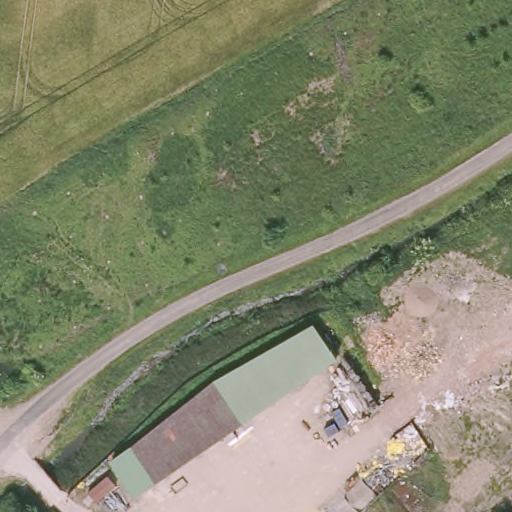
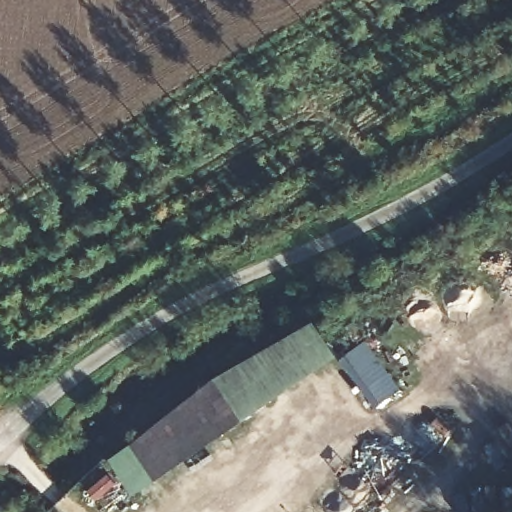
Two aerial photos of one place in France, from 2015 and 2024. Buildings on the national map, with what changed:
unchanged [(216,374),(318,317),(341,355),(158,479),(132,442),(216,374)]
new [(403,389),(377,407),(341,357),(367,340),(403,389)]

